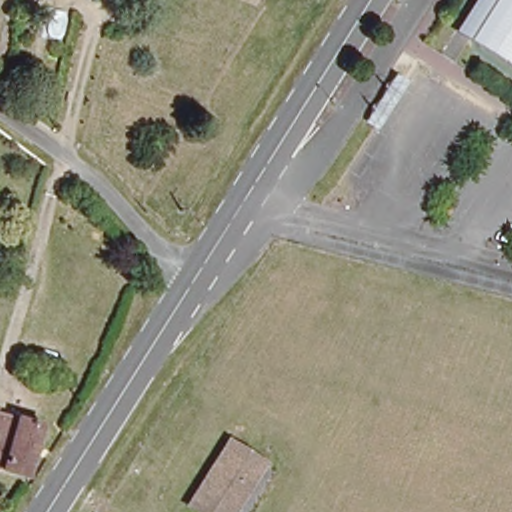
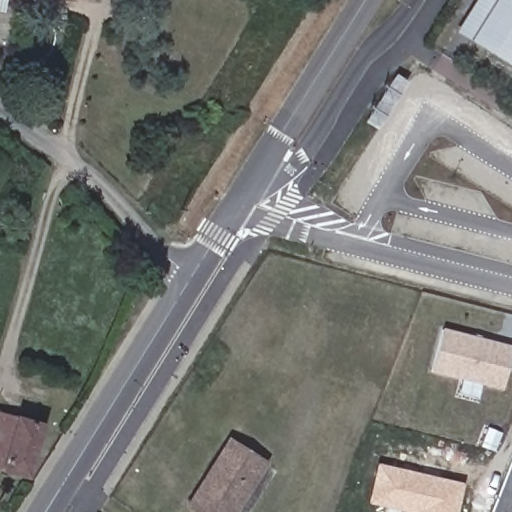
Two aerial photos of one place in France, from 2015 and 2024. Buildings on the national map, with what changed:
unchanged [(512,0),(512,65),(472,40),(498,0),(512,0)]
unchanged [(406,95),(380,139),(368,131),(395,89),(406,95)]
new [(501,389),(431,370),(442,330),(512,348),(501,389)]
unchanged [(0,467),(0,411),(39,421),(25,473),(0,467)]
unchanged [(187,511),(228,445),(256,462),(263,466),(235,512),(189,512),(187,511)]
new [(456,512),(407,512),(366,503),(376,462),(463,483),(456,512)]

